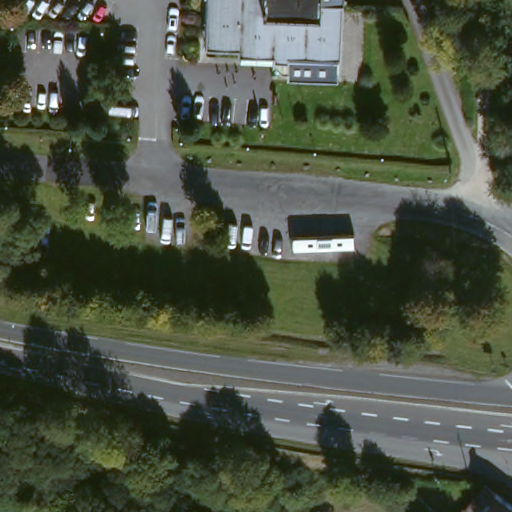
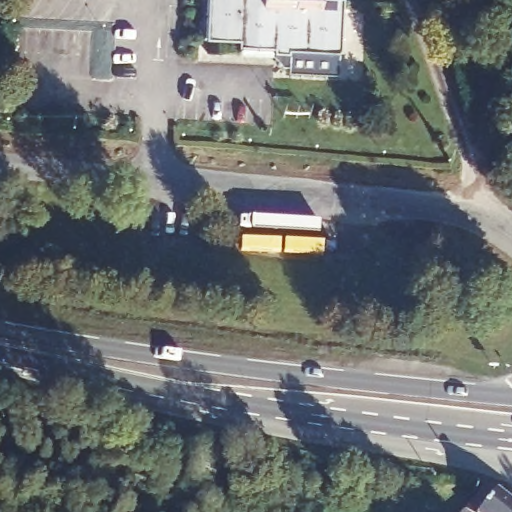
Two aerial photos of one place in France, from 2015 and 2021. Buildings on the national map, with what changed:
unchanged [(300,77),(302,55),(242,55),(241,49),(210,48),(212,0),(321,0),(321,5),(342,6),(341,55),(340,78),(300,77)]
unchanged [(512,511),(512,512),(463,512),(482,487),(512,511)]

